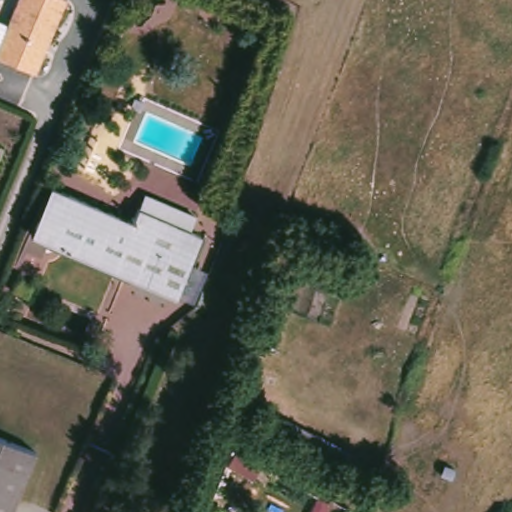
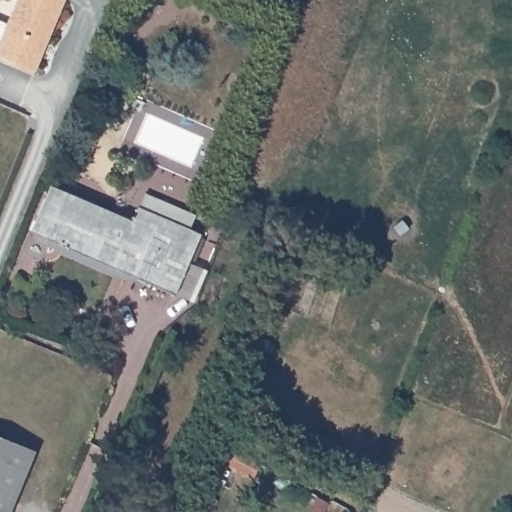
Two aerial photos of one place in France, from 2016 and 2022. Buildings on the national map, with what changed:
unchanged [(62,2),(29,75),(0,63),(0,39),(17,0),(56,0),(62,2)]
unchanged [(46,186),(108,212),(128,221),(134,209),(196,236),(170,295),(26,233),(46,186)]
unchanged [(34,452),(10,512),(0,512),(0,438),(34,452)]
unchanged [(159,490),(153,503),(139,497),(147,484),(159,490)]
unchanged [(170,497),(167,503),(159,499),(162,493),(170,497)]

